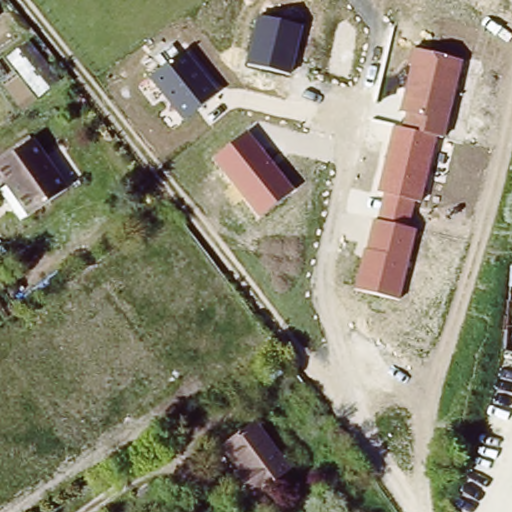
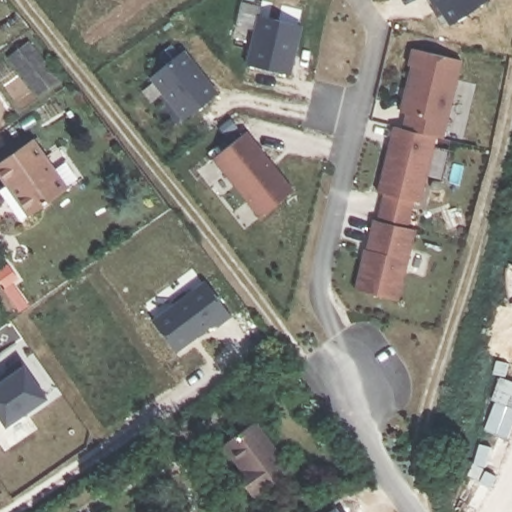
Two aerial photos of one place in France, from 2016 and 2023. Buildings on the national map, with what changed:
new [(452,25),(436,1),(434,2),(432,0),(488,0),(452,25)]
unchanged [(246,63),(257,15),(301,27),(291,74),(246,63)]
unchanged [(63,71),(37,94),(5,59),(32,37),(63,71)]
unchanged [(354,289),(364,248),(368,249),(374,220),(381,220),(386,194),(379,192),(394,125),(402,127),(406,111),(401,110),(416,48),(464,60),(448,137),(438,135),(424,202),(417,201),(410,228),(418,229),(400,301),(354,289)]
unchanged [(148,77),(184,49),(217,93),(183,120),(148,77)]
unchanged [(213,158),(248,132),(294,190),(258,216),(213,158)]
unchanged [(37,138),(71,186),(26,218),(6,189),(15,182),(1,163),(37,138)]
new [(208,275),(236,310),(221,321),(218,317),(179,347),(155,315),(208,275)]
new [(48,399),(6,426),(0,417),(0,383),(25,366),(48,399)]
unchanged [(233,446),(231,442),(261,422),(263,425),(293,471),(256,496),(246,479),(241,472),(247,468),(233,446)]
new [(339,512),(332,512),(337,508),(339,512)]

